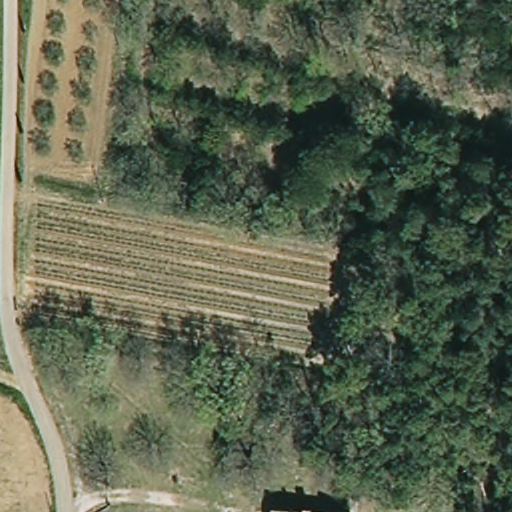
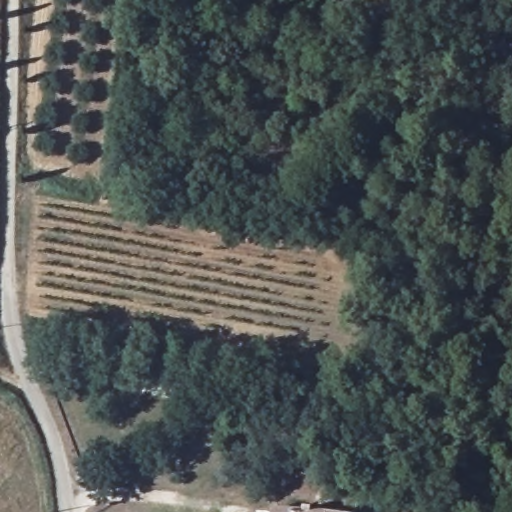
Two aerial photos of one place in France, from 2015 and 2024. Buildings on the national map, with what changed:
unchanged [(316,512),(271,512),(272,507),(316,512)]

